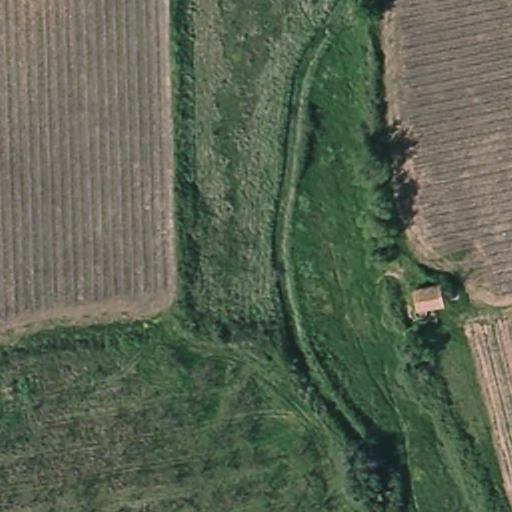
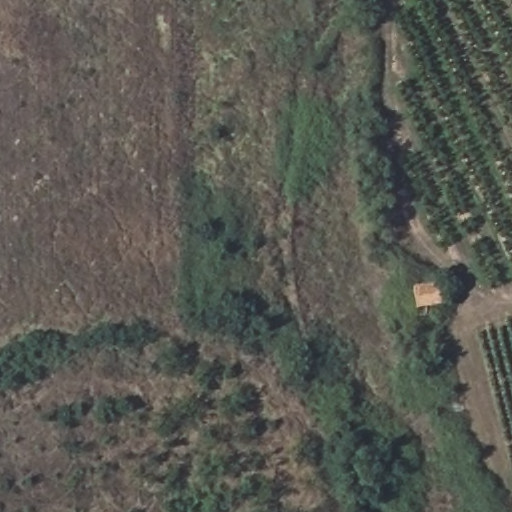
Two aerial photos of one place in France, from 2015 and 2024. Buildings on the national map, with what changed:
unchanged [(442,284),(445,304),(420,311),(415,289),(442,284)]

